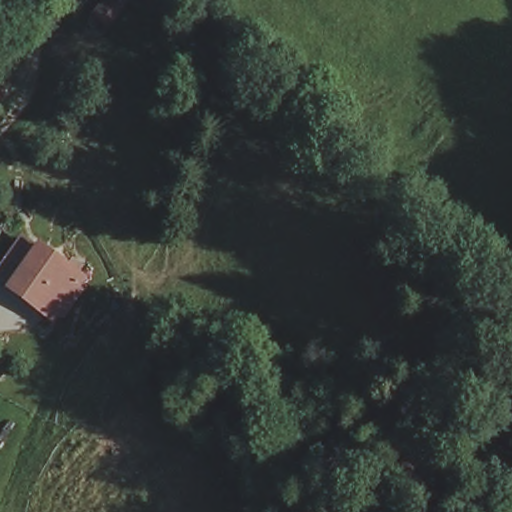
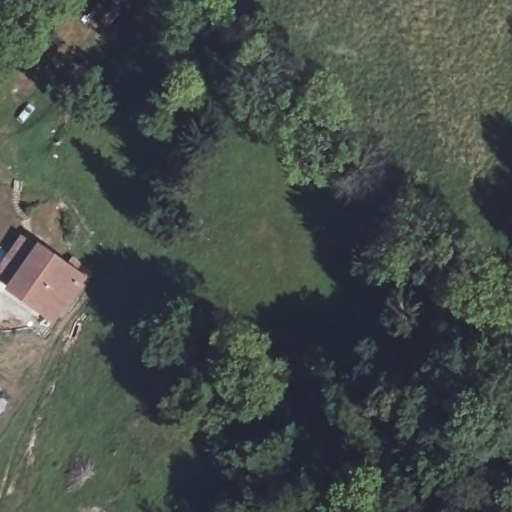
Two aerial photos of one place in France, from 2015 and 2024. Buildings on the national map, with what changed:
unchanged [(92,54),(113,32),(124,43),(103,65),(92,54)]
unchanged [(63,256),(67,246),(80,251),(76,261),(81,263),(63,309),(10,289),(11,286),(0,281),(0,271),(13,239),(27,245),(28,242),(63,256)]

